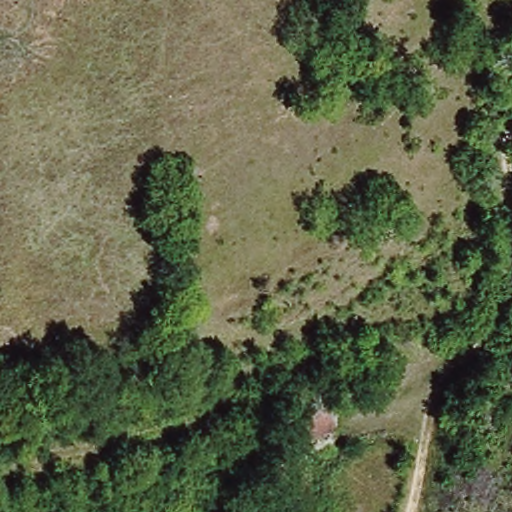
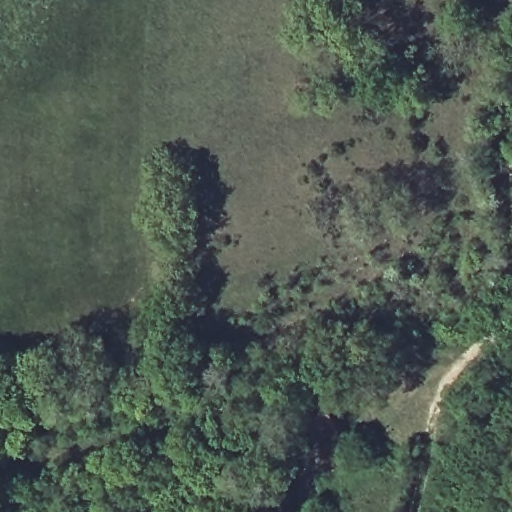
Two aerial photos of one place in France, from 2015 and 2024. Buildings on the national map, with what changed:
unchanged [(340,402),(350,421),(327,432),(317,413),(340,402)]

